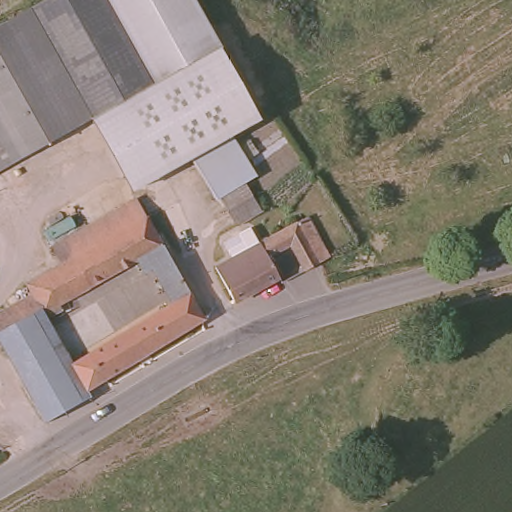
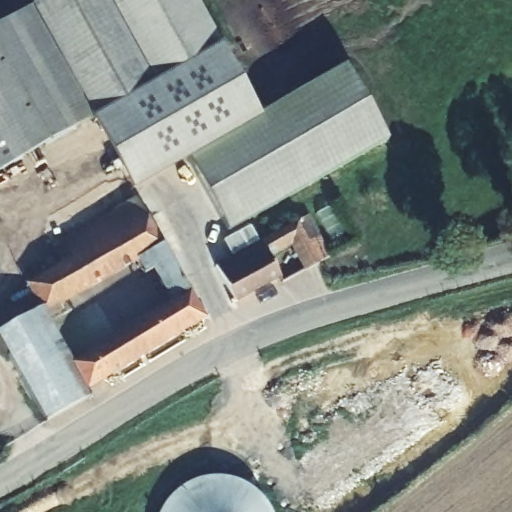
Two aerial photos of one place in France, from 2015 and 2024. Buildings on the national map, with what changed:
unchanged [(150,84),(0,169),(0,28),(47,0),(104,0),(150,84)]
unchanged [(258,121),(131,190),(91,117),(150,84),(104,0),(192,0),(258,121)]
new [(386,142),(227,231),(188,160),(258,121),(344,68),(386,142)]
demolished [(263,211),(240,226),(220,196),(243,181),(263,211)]
unchanged [(82,385),(86,391),(41,416),(0,343),(0,305),(30,290),(25,279),(60,259),(51,242),(133,195),(198,313),(82,385)]
unchanged [(233,301),(213,266),(234,255),(227,244),(252,230),(259,241),(306,216),(327,256),(317,262),(288,278),(286,272),(301,265),(290,245),(267,257),(277,276),(233,301)]
new [(171,499),(177,490),(185,483),(193,477),(203,473),(213,470),(223,469),(234,470),(244,473),(253,477),(262,483),(270,490),(275,499),(280,508),(281,512),(166,512),(167,508),(171,499)]

